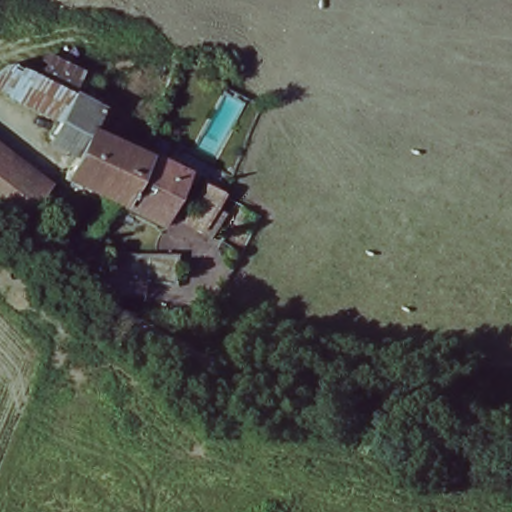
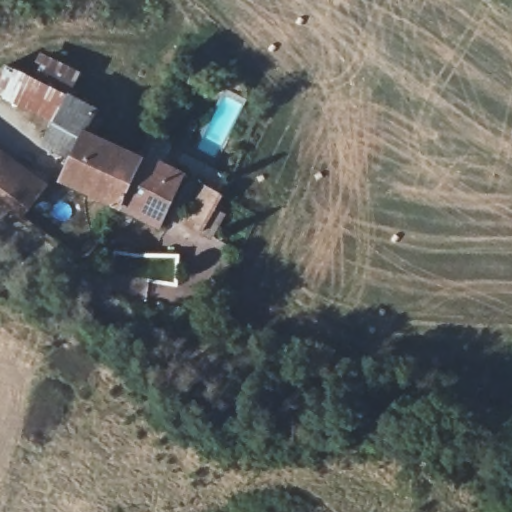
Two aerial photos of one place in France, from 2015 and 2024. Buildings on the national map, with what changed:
unchanged [(40,53),(81,73),(71,94),(29,74),(40,53)]
unchanged [(5,96),(0,93),(0,69),(7,64),(9,64),(29,74),(71,94),(57,120),(5,96)]
unchanged [(97,109),(85,131),(73,157),(45,143),(57,120),(71,94),(97,109)]
unchanged [(63,179),(73,157),(85,131),(141,157),(143,157),(121,206),(63,179)]
unchanged [(45,184),(21,216),(0,200),(0,151),(45,184)]
unchanged [(143,157),(141,157),(143,153),(185,174),(166,213),(161,224),(121,206),(143,157)]
unchanged [(203,231),(185,222),(205,185),(224,194),(220,200),(208,222),(203,231)]
unchanged [(180,251),(179,284),(110,274),(117,242),(180,251)]

